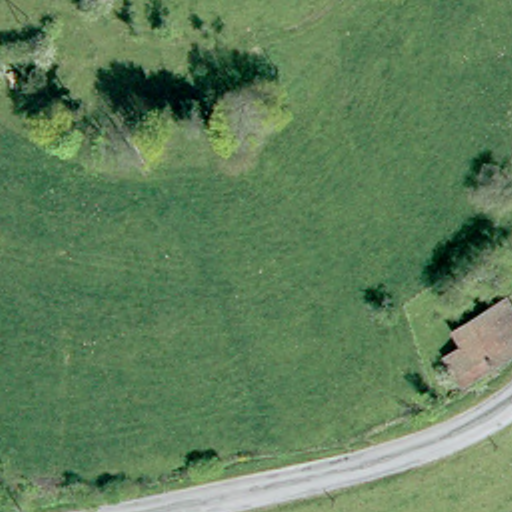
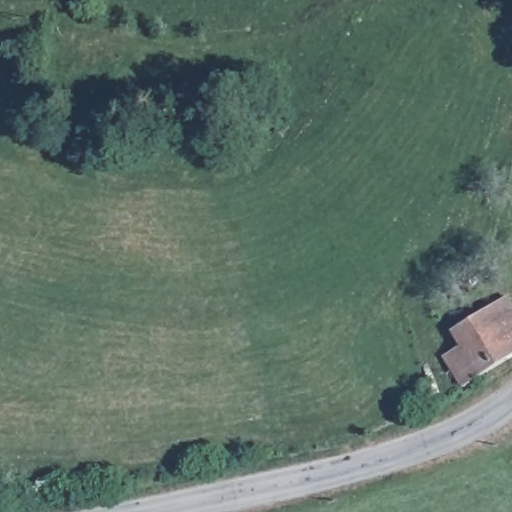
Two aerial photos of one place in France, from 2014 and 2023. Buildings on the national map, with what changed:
unchanged [(453,356),(470,343),(460,329),(512,294),(512,295),(512,357),(473,385),(453,356)]

